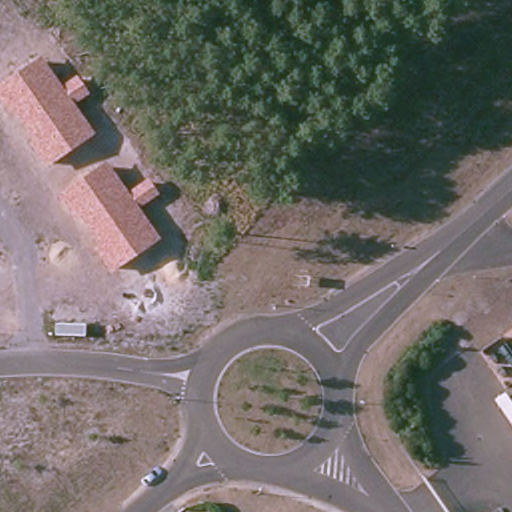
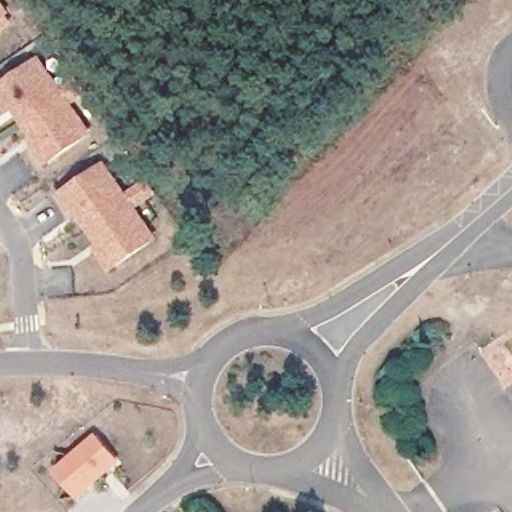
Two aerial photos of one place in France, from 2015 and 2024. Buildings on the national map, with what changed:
new [(5,13),(10,21),(0,27),(0,1),(8,12),(5,13)]
unchanged [(0,85),(41,57),(61,85),(76,74),(90,95),(75,105),(96,134),(46,169),(0,100),(0,85)]
unchanged [(58,196),(106,162),(126,192),(147,177),(159,194),(138,208),(160,240),(111,273),(58,196)]
new [(56,472),(98,436),(122,463),(80,500),(56,472)]

